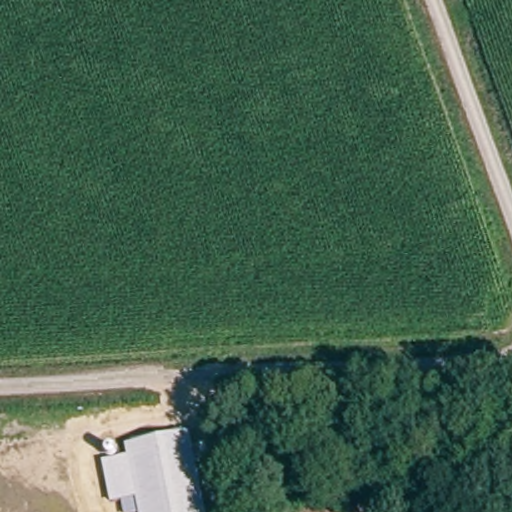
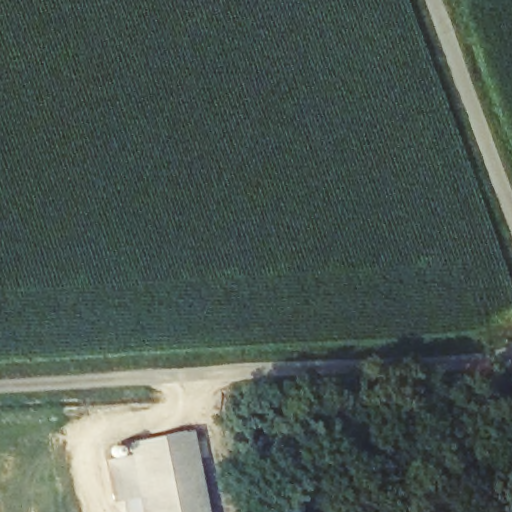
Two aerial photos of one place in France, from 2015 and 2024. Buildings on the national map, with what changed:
unchanged [(206,512),(125,512),(123,500),(110,502),(102,458),(127,454),(125,444),(189,430),(206,512)]

